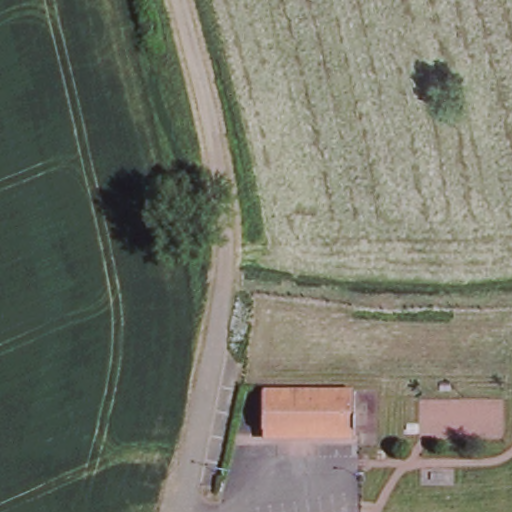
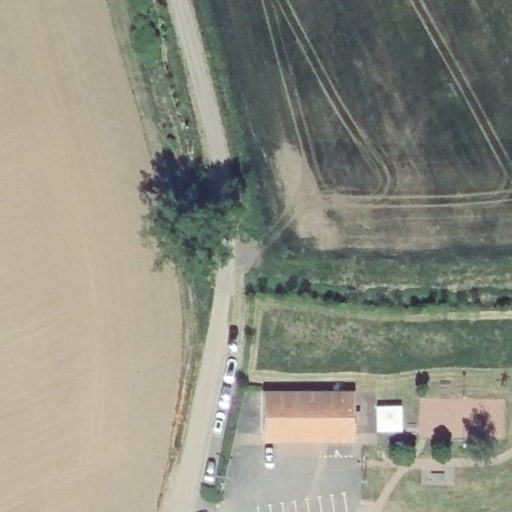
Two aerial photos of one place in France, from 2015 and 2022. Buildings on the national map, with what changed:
unchanged [(355,394),(355,435),(262,435),(262,395),(355,394)]

